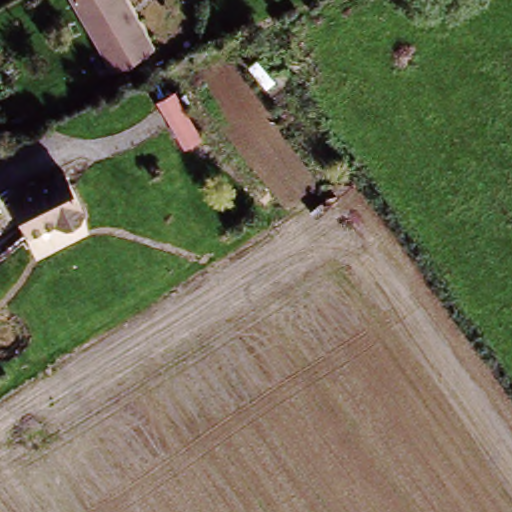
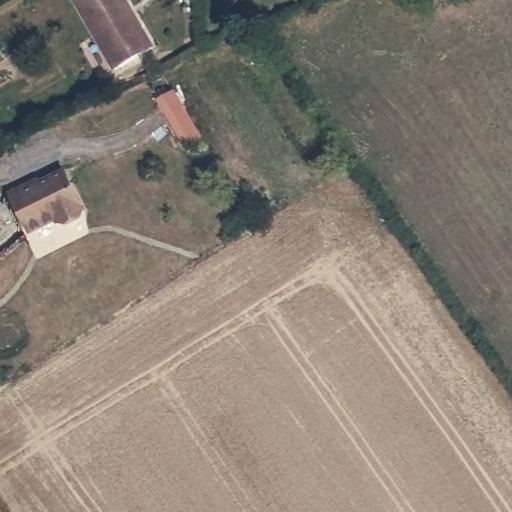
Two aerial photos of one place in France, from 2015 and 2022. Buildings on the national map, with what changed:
unchanged [(134,0),(164,51),(127,71),(86,0),(134,0)]
unchanged [(176,89),(204,137),(184,148),(156,100),(176,89)]
unchanged [(95,207),(95,216),(79,224),(72,223),(69,218),(42,232),(24,199),(22,193),(49,180),(50,183),(75,170),(95,207)]

